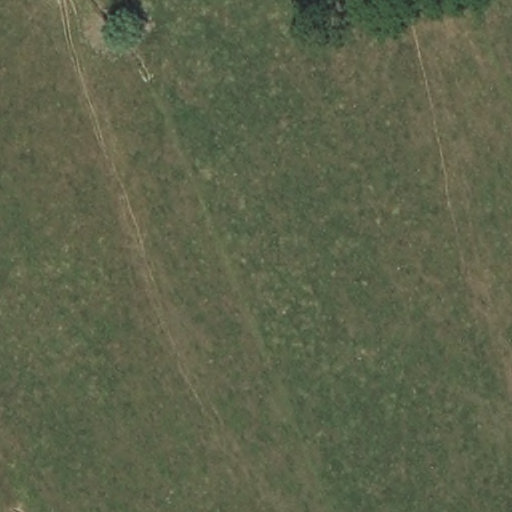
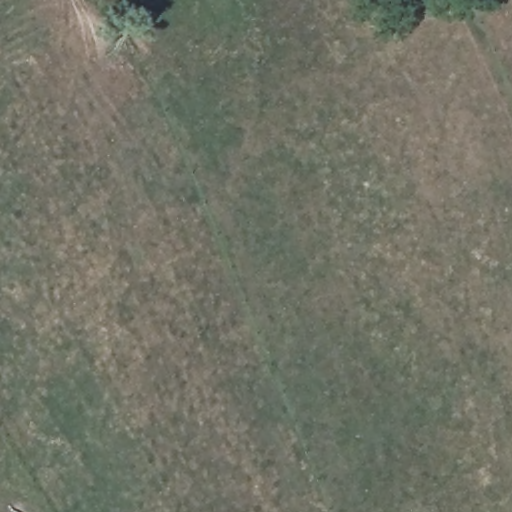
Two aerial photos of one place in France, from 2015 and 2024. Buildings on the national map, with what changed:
[]

